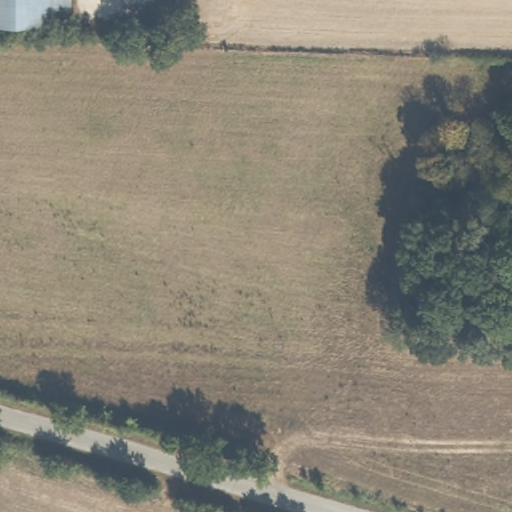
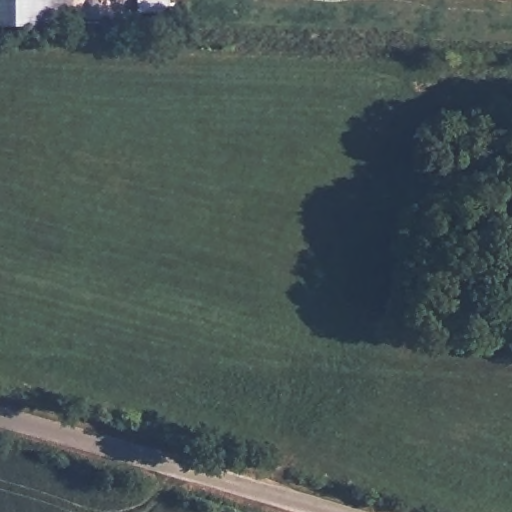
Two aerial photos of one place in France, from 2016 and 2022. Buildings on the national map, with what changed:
unchanged [(0,28),(0,0),(71,0),(71,28),(0,28)]

